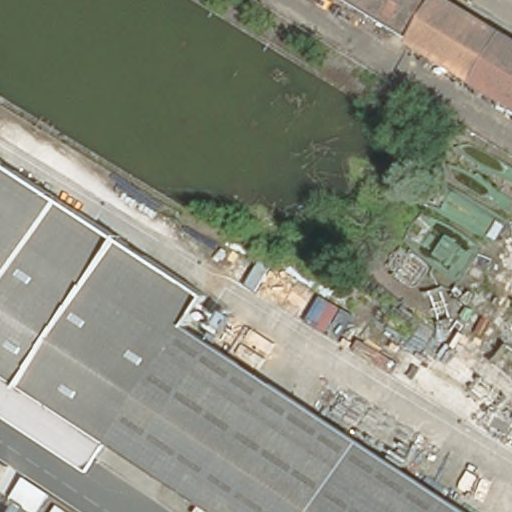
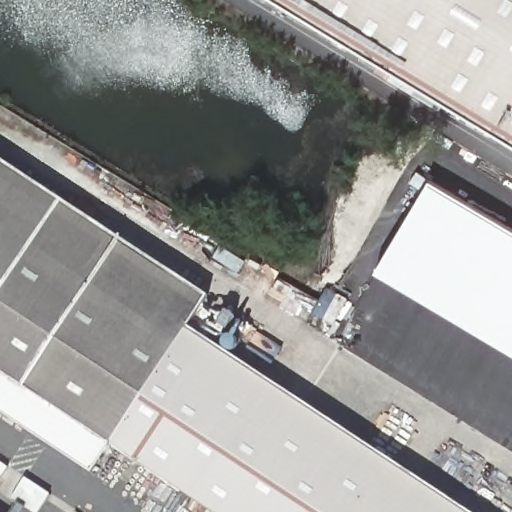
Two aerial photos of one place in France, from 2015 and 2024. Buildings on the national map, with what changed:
new [(287,0),(512,0),(512,138),(287,0)]
demolished [(444,0),(462,10),(512,40),(512,103),(492,91),(423,49),(426,46),(348,0),(444,0)]
unchanged [(127,284),(112,304),(427,512),(218,512),(110,440),(0,368),(0,157),(147,253),(127,284)]
new [(375,269),(431,179),(512,228),(512,351),(375,269)]
new [(209,296),(189,325),(127,284),(147,253),(209,296)]
unchanged [(473,512),(427,512),(112,304),(127,284),(473,512)]
new [(89,471),(0,412),(0,368),(110,440),(89,471)]
new [(0,479),(0,463),(7,467),(0,479)]

